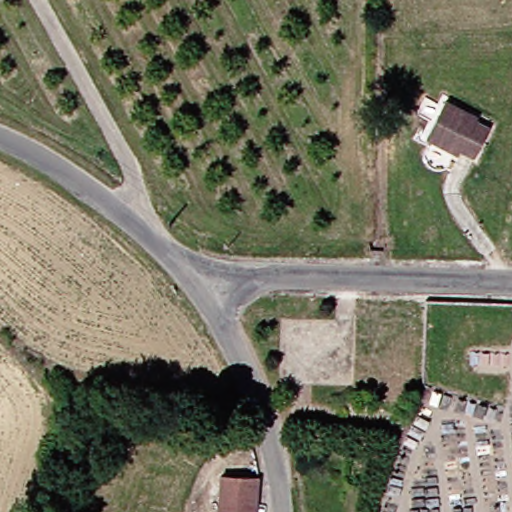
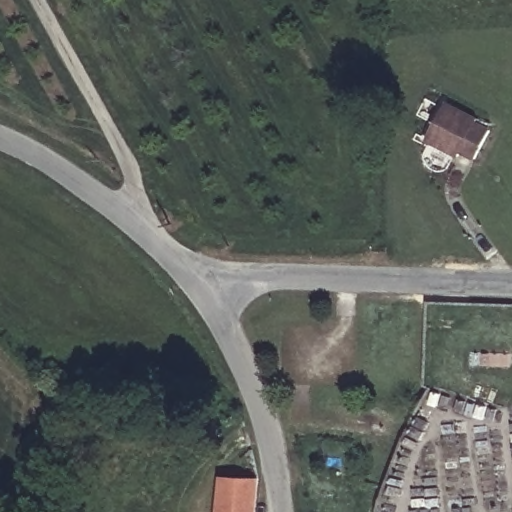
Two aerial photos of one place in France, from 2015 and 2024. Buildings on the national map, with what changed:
unchanged [(481,121),(479,124),(493,132),(479,160),(466,153),(463,158),(430,142),(448,105),(481,121)]
unchanged [(228,512),(233,482),(269,483),(267,512),(228,512)]

